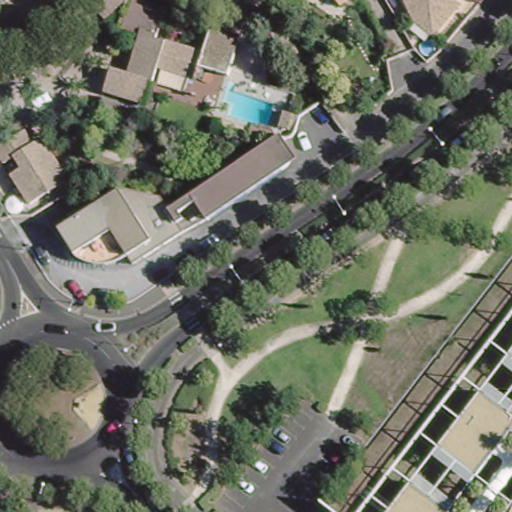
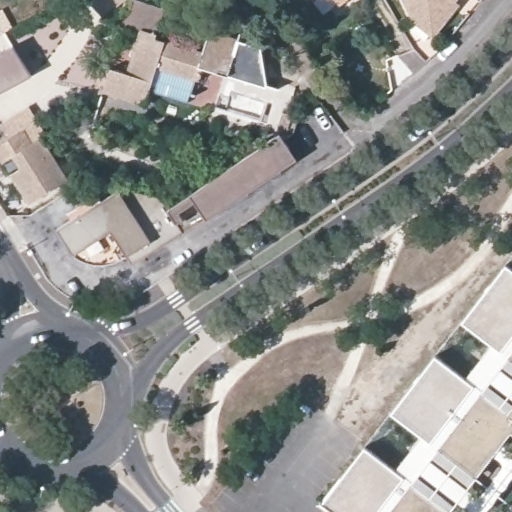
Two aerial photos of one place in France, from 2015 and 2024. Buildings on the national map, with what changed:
unchanged [(102,78),(113,42),(130,47),(137,26),(113,18),(118,1),(125,4),(126,0),(162,0),(153,28),(202,43),(209,21),(237,30),(227,63),(227,66),(223,65),(202,59),(198,73),(193,89),(177,84),(148,75),(143,90),(142,96),(100,83),(102,78)]
unchanged [(336,0),(347,0),(340,5),(336,0)]
unchanged [(413,26),(398,0),(460,0),(433,39),(413,26)]
unchanged [(9,170),(15,166),(20,163),(12,151),(2,158),(0,155),(0,139),(22,126),(30,139),(40,134),(65,176),(37,193),(27,199),(23,193),(13,178),(9,170)]
unchanged [(190,194),(282,134),(297,158),(207,220),(190,194)]
unchanged [(67,208),(93,190),(97,195),(120,180),(161,188),(185,223),(135,257),(130,249),(118,257),(113,259),(108,259),(102,260),(95,259),(89,257),(85,255),(81,253),(75,248),(58,223),(70,214),(67,208)]
new [(512,269),(512,336),(500,351),(465,323),(506,265),(512,269)]
unchanged [(507,355),(512,349),(512,358),(507,355)]
new [(473,385),(430,440),(392,413),(435,356),(473,385)]
unchanged [(512,414),(512,426),(477,474),(438,446),(480,390),(512,414)]
new [(509,412),(512,408),(512,414),(509,412)]
new [(512,426),(512,432),(510,430),(512,426)]
new [(405,476),(376,512),(330,512),(320,506),(365,449),(405,476)]
unchanged [(412,481),(449,509),(447,512),(388,512),(412,481)]
unchanged [(509,507),(512,500),(512,512),(508,512),(509,507)]

